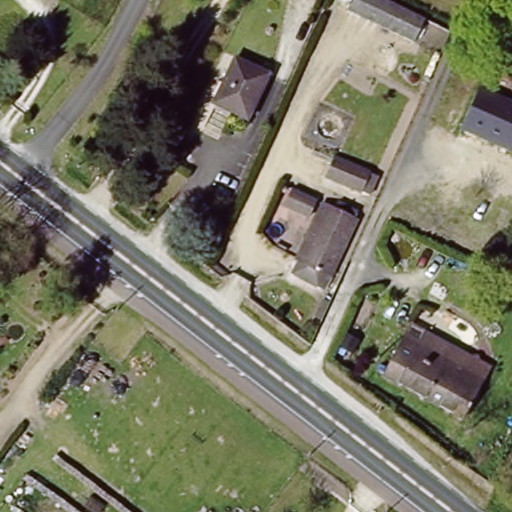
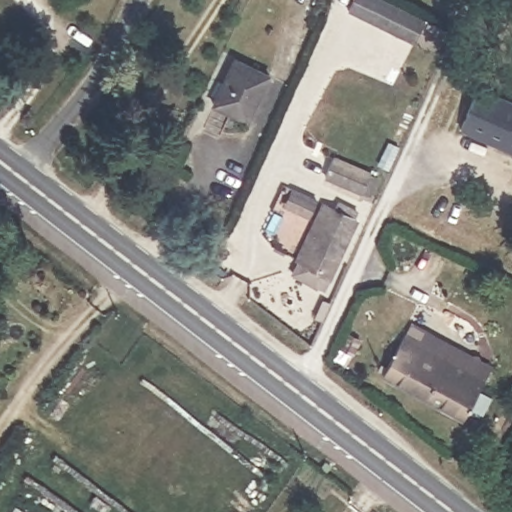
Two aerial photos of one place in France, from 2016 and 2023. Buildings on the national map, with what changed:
unchanged [(424,19),(413,45),(344,14),(351,0),(387,0),(424,19)]
unchanged [(208,109),(230,64),(261,79),(241,124),(208,109)]
unchanged [(512,100),(512,154),(459,131),(479,85),(512,100)]
unchanged [(357,189),(324,175),(328,168),(333,157),(364,172),(361,179),(357,189)]
unchanged [(287,213),(295,195),(313,203),(305,221),(287,213)]
unchanged [(320,202),(331,207),(334,202),(348,210),(346,215),(359,222),(327,276),(322,273),(324,269),(317,266),(304,284),(283,271),(320,202)]
unchanged [(466,412),(402,376),(389,369),(409,332),(413,325),(426,332),(479,361),(492,367),(466,412)]

